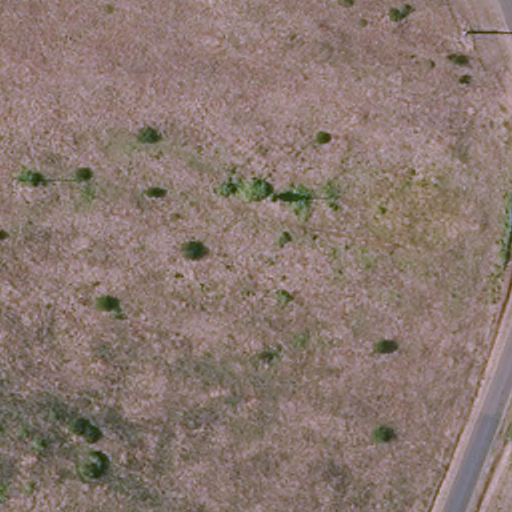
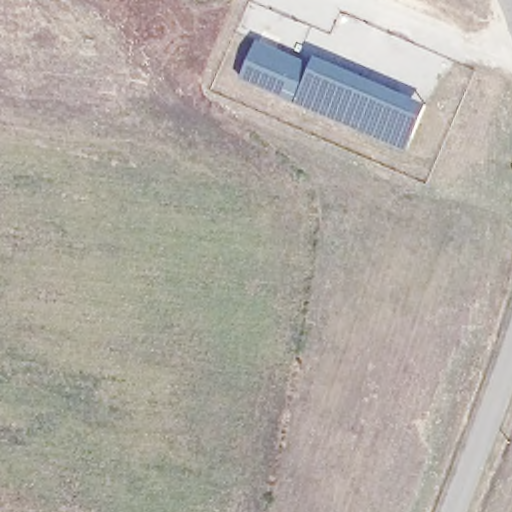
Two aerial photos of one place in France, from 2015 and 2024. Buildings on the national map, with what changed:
new [(257,40),(313,64),(317,56),(428,104),(408,152),(241,79),(257,40)]

